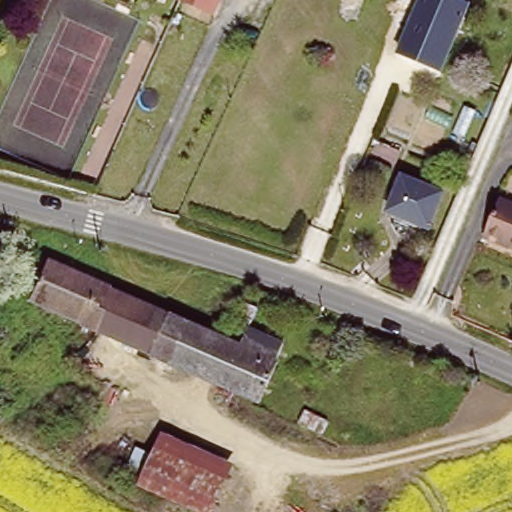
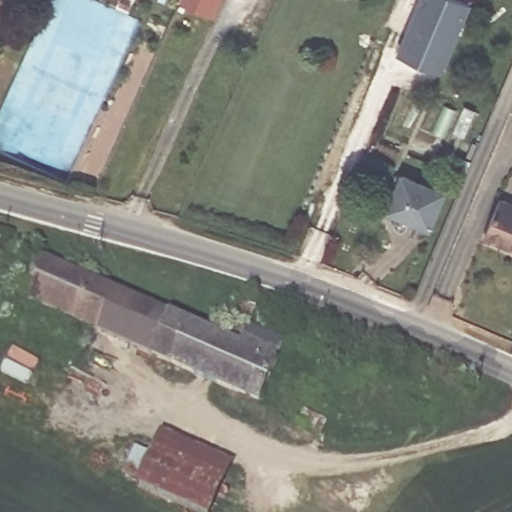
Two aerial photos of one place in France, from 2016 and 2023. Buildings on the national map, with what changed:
unchanged [(215,17),(184,3),(185,0),(223,0),(215,17)]
unchanged [(395,53),(418,0),(462,0),(472,4),(444,73),(395,53)]
unchanged [(386,208),(400,176),(440,194),(425,225),(386,208)]
unchanged [(505,193),(512,195),(512,244),(487,233),(505,193)]
unchanged [(55,252),(57,249),(252,333),(259,317),(295,332),(289,349),(271,391),(39,291),(40,286),(32,282),(47,248),(55,252)]
unchanged [(325,421),(320,435),(295,424),(302,411),(325,421)]
unchanged [(234,464),(228,477),(212,512),(202,512),(142,485),(159,446),(165,433),(234,464)]

